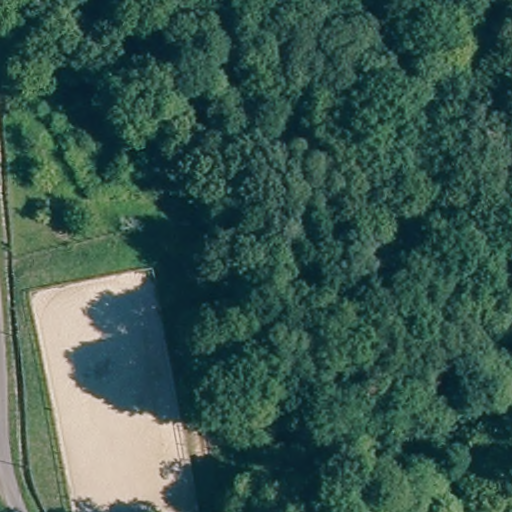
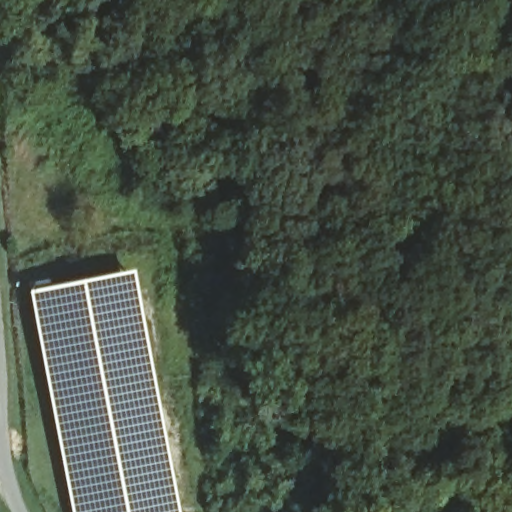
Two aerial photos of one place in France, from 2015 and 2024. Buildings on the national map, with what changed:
new [(178,512),(71,512),(28,292),(132,272),(178,512)]

